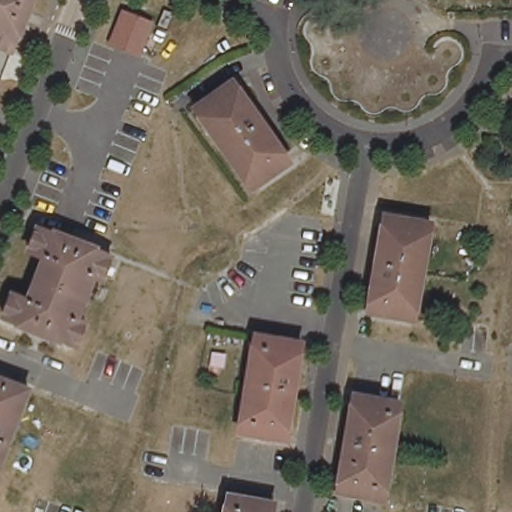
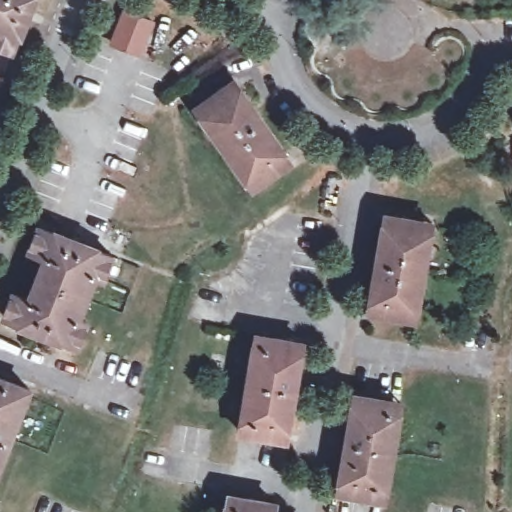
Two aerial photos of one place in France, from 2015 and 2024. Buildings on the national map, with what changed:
unchanged [(12,46),(0,41),(0,0),(30,0),(12,46)]
unchanged [(152,22),(140,54),(112,42),(126,11),(152,22)]
unchanged [(292,160),(253,188),(195,107),(235,80),(292,160)]
unchanged [(432,222),(417,319),(369,311),(385,215),(432,222)]
unchanged [(86,317),(77,340),(5,311),(13,288),(28,294),(45,251),(30,245),(40,222),(112,251),(103,273),(95,270),(77,313),(86,317)]
unchanged [(303,343),(287,440),(240,433),(255,335),(303,343)]
unchanged [(0,465),(0,378),(30,389),(0,465)]
unchanged [(402,402),(387,498),(338,490),(354,394),(402,402)]
unchanged [(275,512),(226,512),(229,496),(276,504),(275,512)]

